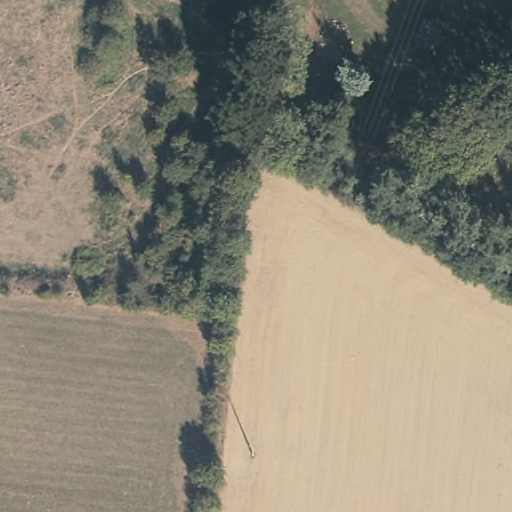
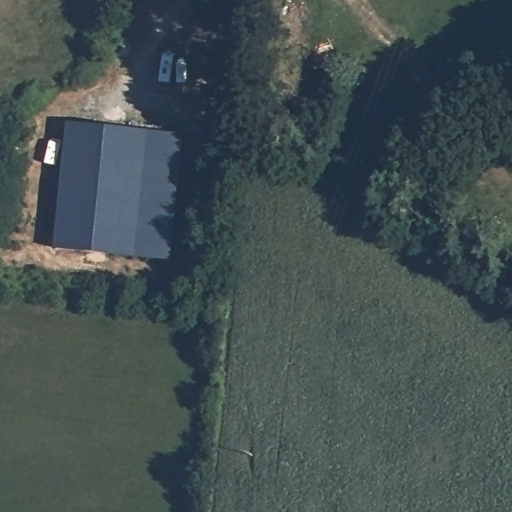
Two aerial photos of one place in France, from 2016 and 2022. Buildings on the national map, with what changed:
new [(171,258),(55,248),(67,121),(184,132),(171,258)]
unchanged [(471,185),(491,200),(500,192),(512,201),(512,208),(498,226),(462,194),(471,185)]

